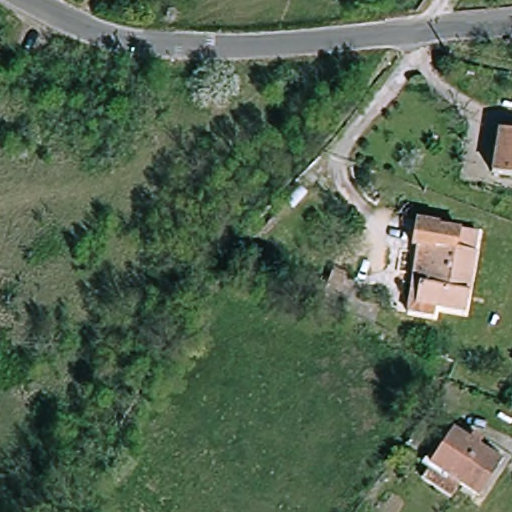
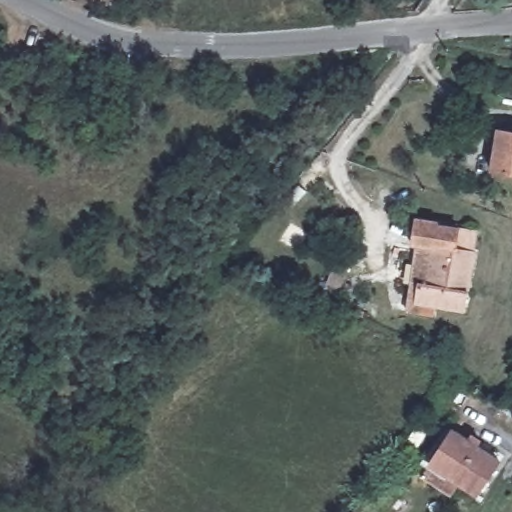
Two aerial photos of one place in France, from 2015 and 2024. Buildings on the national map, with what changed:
unchanged [(512,174),(492,170),(499,128),(512,131),(512,174)]
unchanged [(417,243),(422,219),(441,222),(441,226),(481,232),(469,311),(440,307),(439,317),(411,311),(420,244),(417,243)]
unchanged [(457,430),(504,461),(483,495),(465,483),(456,498),(425,478),(457,430)]

